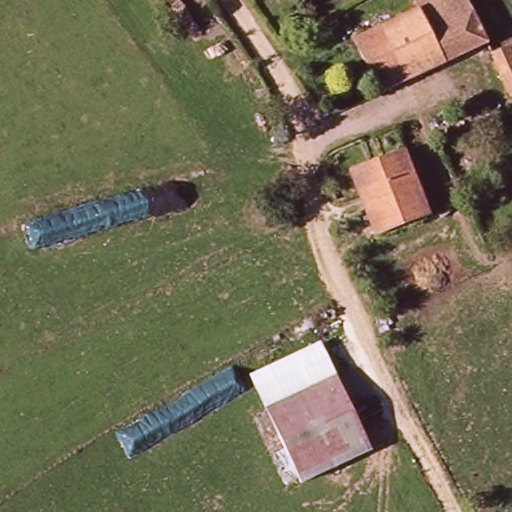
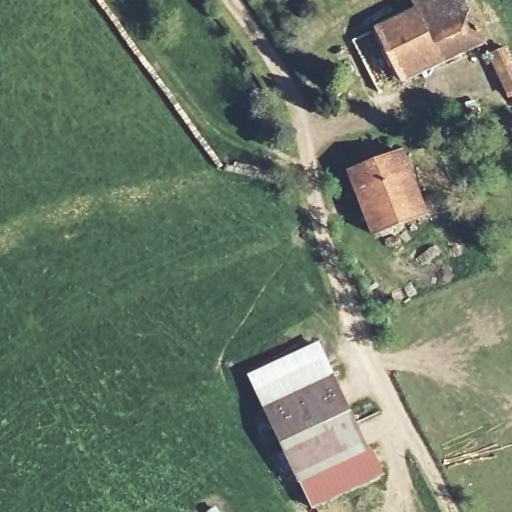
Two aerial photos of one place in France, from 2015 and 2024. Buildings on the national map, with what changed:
unchanged [(389,93),(363,40),(425,7),(421,0),(472,0),(492,40),(389,93)]
unchanged [(512,50),(512,91),(493,57),(511,47),(512,50)]
unchanged [(366,195),(358,173),(410,154),(418,174),(366,195)]
unchanged [(432,215),(381,235),(366,195),(418,174),(432,215)]
unchanged [(250,375),(320,342),(372,452),(301,484),(250,375)]
new [(385,477),(315,508),(301,484),(372,452),(385,477)]

